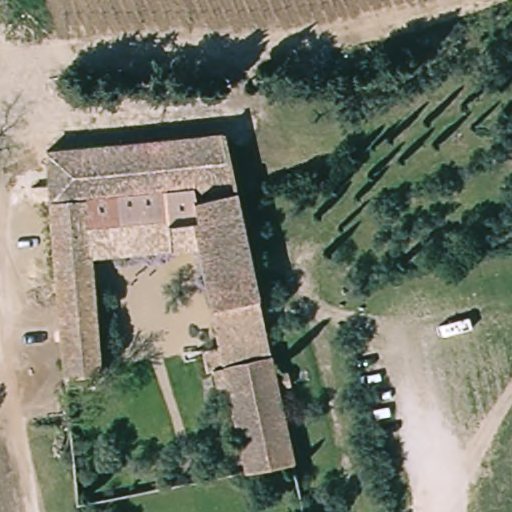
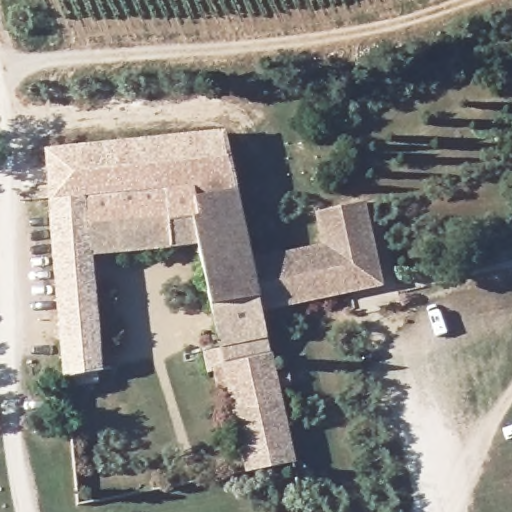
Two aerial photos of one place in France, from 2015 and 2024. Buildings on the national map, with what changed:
unchanged [(216,123),(291,451),(241,460),(222,376),(212,379),(208,363),(203,364),(198,339),(213,336),(192,237),(87,246),(96,357),(60,364),(42,141),(216,123)]
new [(382,284),(259,313),(247,260),(321,244),(314,211),(364,202),(382,284)]
unchanged [(286,374),(279,376),(276,364),(283,363),(286,374)]
unchanged [(83,408),(69,410),(67,388),(82,387),(83,408)]

